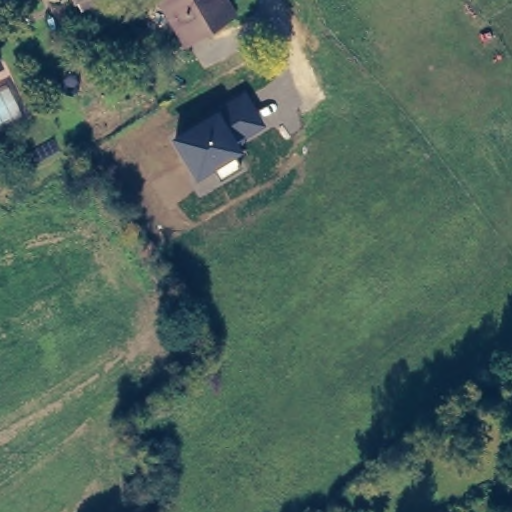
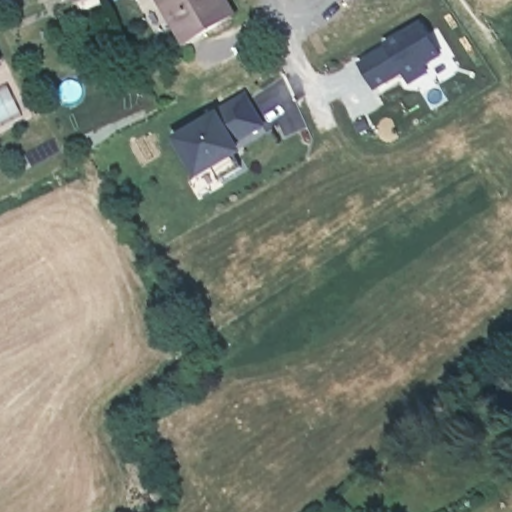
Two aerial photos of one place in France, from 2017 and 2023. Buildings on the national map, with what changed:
unchanged [(186,40),(158,0),(223,0),(229,10),(186,40)]
new [(358,64),(385,45),(383,41),(418,19),(441,56),(424,67),(428,74),(409,84),(402,74),(374,90),(358,64)]
unchanged [(266,126),(237,143),(243,153),(235,158),(241,167),(220,180),(214,169),(196,180),(171,136),(218,110),(216,108),(246,91),(266,126)]

